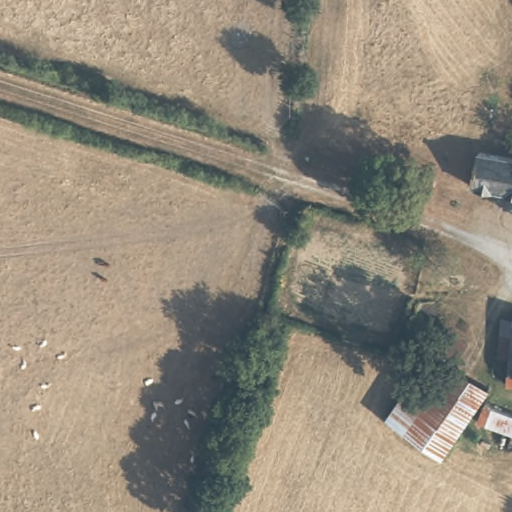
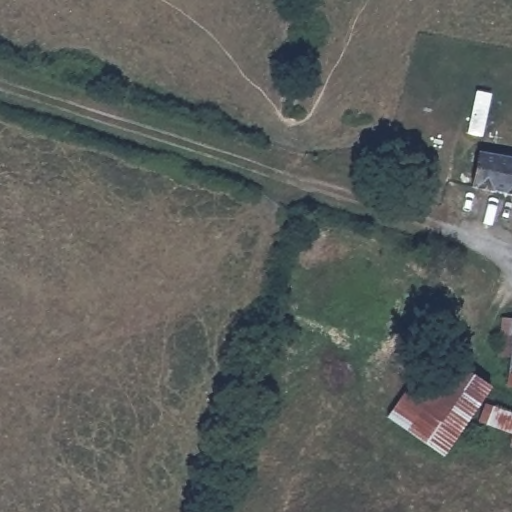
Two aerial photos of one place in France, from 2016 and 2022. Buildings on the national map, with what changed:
unchanged [(512,154),(512,194),(473,187),(480,148),(512,154)]
unchanged [(511,356),(499,355),(502,318),(512,319),(512,374),(510,374),(511,356)]
unchanged [(458,354),(444,373),(479,400),(458,432),(440,456),(386,416),(437,339),(458,354)]

